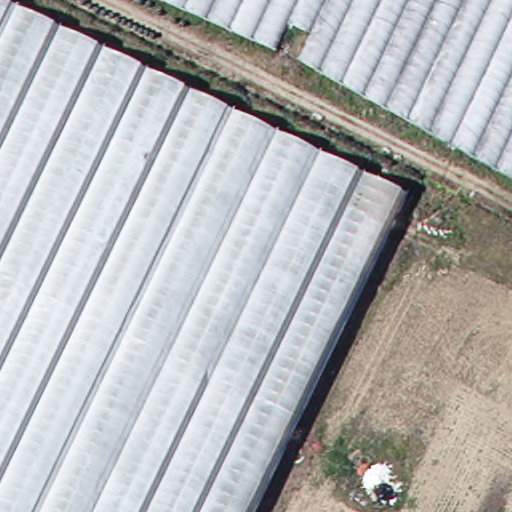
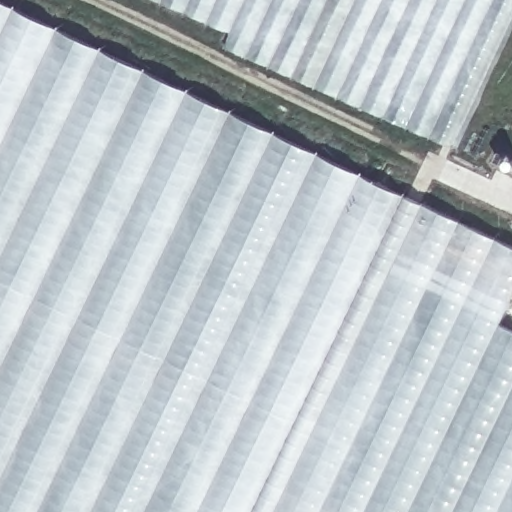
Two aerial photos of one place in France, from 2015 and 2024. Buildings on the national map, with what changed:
unchanged [(257,512),(0,512),(0,0),(13,0),(412,193),(257,512)]
unchanged [(316,72),(150,0),(512,0),(512,34),(457,150),(316,72)]
new [(412,193),(512,244),(512,308),(504,324),(512,328),(512,512),(257,512),(412,193)]

